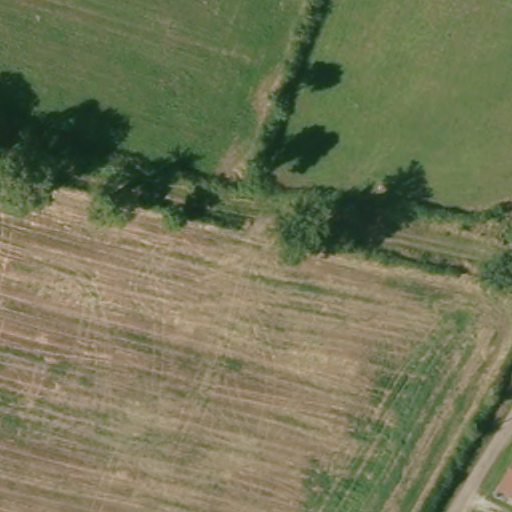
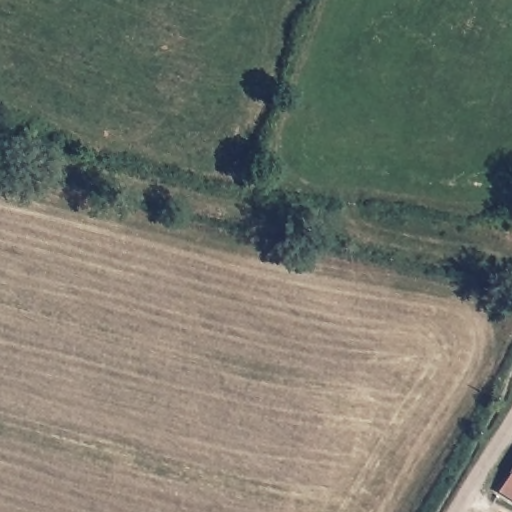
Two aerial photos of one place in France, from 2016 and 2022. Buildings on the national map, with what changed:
unchanged [(507,491),(512,483),(512,494),(507,491)]

